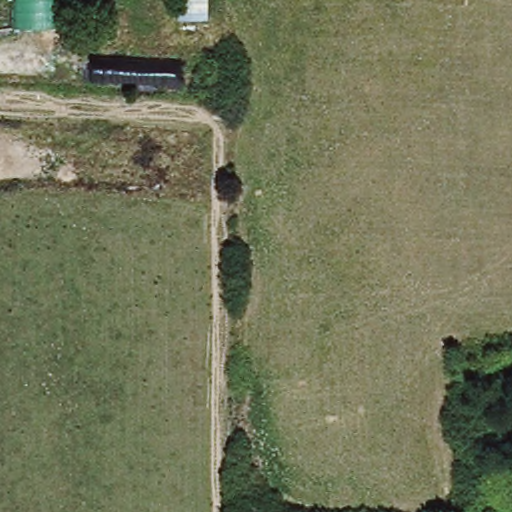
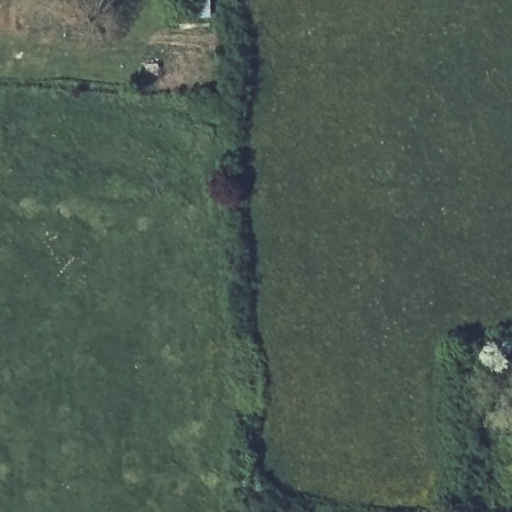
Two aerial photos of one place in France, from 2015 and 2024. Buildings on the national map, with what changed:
demolished [(54,0),(55,27),(0,28),(0,0),(54,0)]
unchanged [(179,16),(178,0),(205,0),(205,16),(179,16)]

